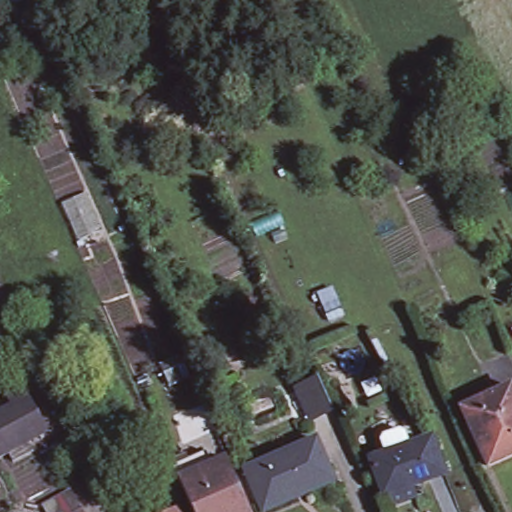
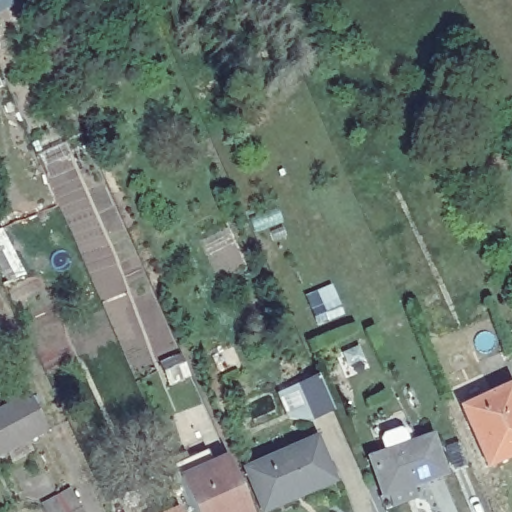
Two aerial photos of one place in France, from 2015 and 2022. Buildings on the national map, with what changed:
unchanged [(312,415),(298,383),(321,372),(335,403),(312,415)]
unchanged [(490,464),(462,405),(511,384),(512,386),(512,454),(490,464)]
unchanged [(0,408),(29,393),(45,428),(2,450),(0,450),(0,408)]
unchanged [(394,510),(389,497),(385,498),(370,461),(386,455),(380,439),(409,428),(415,444),(432,437),(447,475),(412,488),(417,500),(394,510)]
unchanged [(265,504),(247,468),(315,437),(335,480),(307,492),(267,512),(265,504)]
unchanged [(144,481),(131,452),(150,445),(161,473),(144,481)]
unchanged [(178,466),(211,451),(217,465),(233,458),(256,512),(199,512),(185,480),(178,466)]
unchanged [(44,512),(40,505),(71,485),(85,512),(44,512)]
unchanged [(182,512),(170,512),(180,507),(182,512)]

